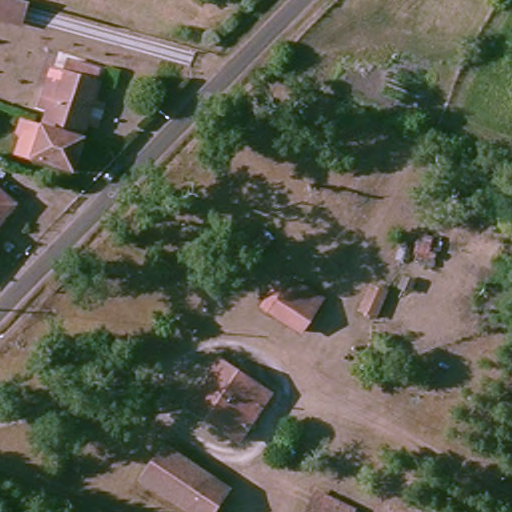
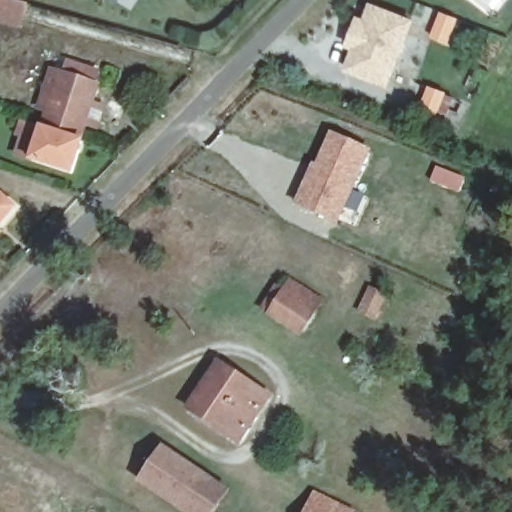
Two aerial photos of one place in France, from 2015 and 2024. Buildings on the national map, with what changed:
unchanged [(15,29),(0,25),(0,0),(11,0),(20,2),(15,29)]
new [(357,36),(350,34),(357,15),(365,18),(370,2),(411,17),(386,81),(346,65),(357,36)]
new [(441,11),(456,17),(447,40),(432,35),(441,11)]
unchanged [(92,80),(88,91),(92,93),(74,145),(39,134),(42,121),(33,118),(40,92),(44,75),(56,77),(59,69),(92,80)]
new [(430,85),(445,91),(436,115),(420,109),(430,85)]
unchanged [(39,134),(74,145),(77,145),(68,176),(19,160),(29,130),(39,134)]
new [(317,162),(331,130),(370,146),(337,219),(299,201),(296,200),(313,161),(317,162)]
unchanged [(10,210),(0,221),(0,200),(10,210)]
unchanged [(252,302),(269,281),(276,287),(285,277),(312,300),(288,330),(252,302)]
unchanged [(375,330),(361,320),(374,300),(388,310),(375,330)]
unchanged [(264,399),(235,441),(189,410),(218,367),(264,399)]
unchanged [(222,495),(211,512),(180,512),(136,482),(158,450),(222,495)]
unchanged [(346,510),(346,512),(303,512),(311,493),(346,510)]

